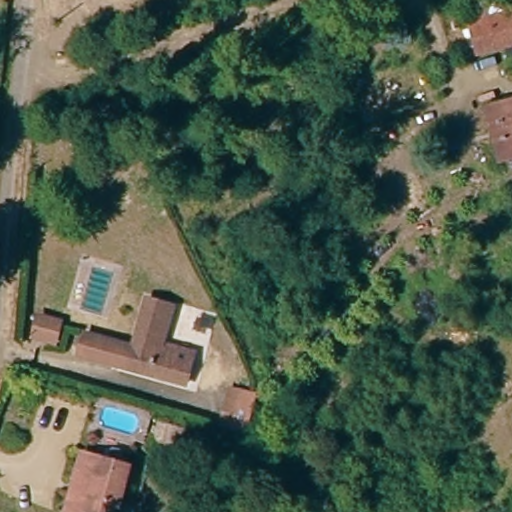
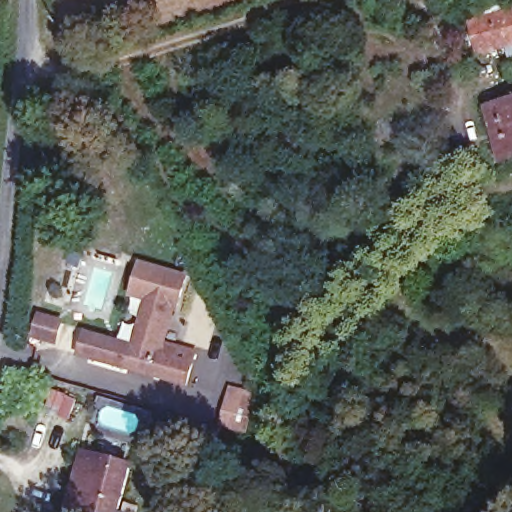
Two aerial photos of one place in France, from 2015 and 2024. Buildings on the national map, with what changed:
unchanged [(512,16),(512,45),(473,54),(466,27),(512,16)]
unchanged [(512,106),(512,158),(501,161),(489,112),(512,106)]
new [(188,275),(177,310),(173,308),(148,301),(147,303),(127,296),(138,259),(188,275)]
unchanged [(195,355),(185,389),(125,370),(80,355),(86,334),(131,348),(133,350),(148,301),(173,308),(163,340),(162,345),(195,355)]
unchanged [(51,336),(30,329),(36,310),(57,317),(51,336)]
unchanged [(232,391),(244,395),(258,400),(254,415),(248,439),(222,431),(228,407),(229,402),(232,391)]
unchanged [(176,426),(171,441),(150,435),(156,419),(176,426)]
unchanged [(128,470),(116,512),(68,512),(63,510),(66,501),(82,453),(128,470)]

